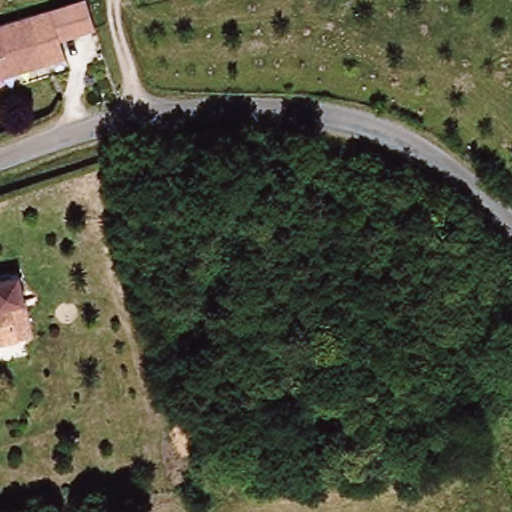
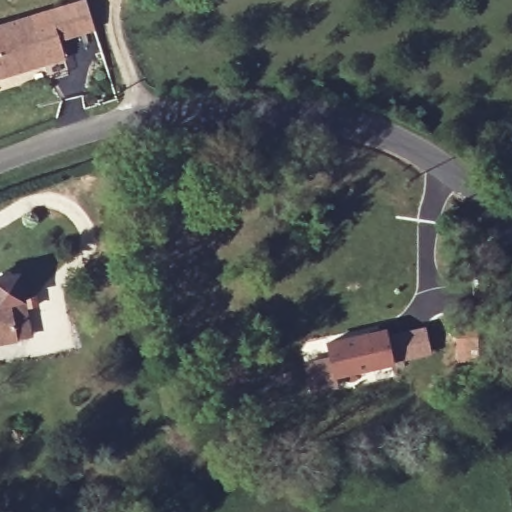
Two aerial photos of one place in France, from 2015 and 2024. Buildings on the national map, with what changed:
unchanged [(71,56),(0,83),(0,29),(75,0),(85,0),(91,23),(65,32),(71,56)]
unchanged [(20,345),(0,348),(0,296),(13,294),(20,345)]
new [(330,345),(386,331),(388,339),(426,329),(432,353),(408,359),(409,361),(339,378),(341,387),(314,394),(307,367),(334,360),(330,345)]

